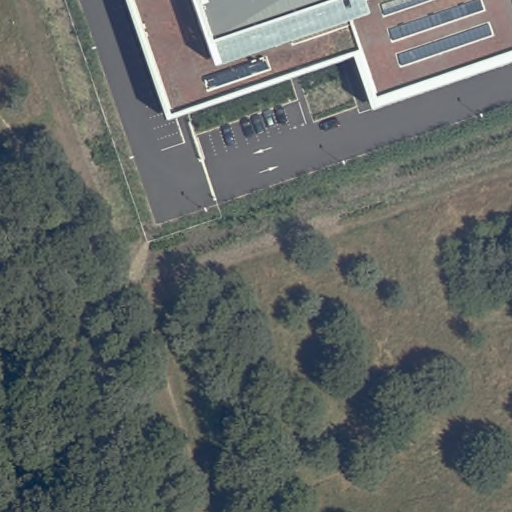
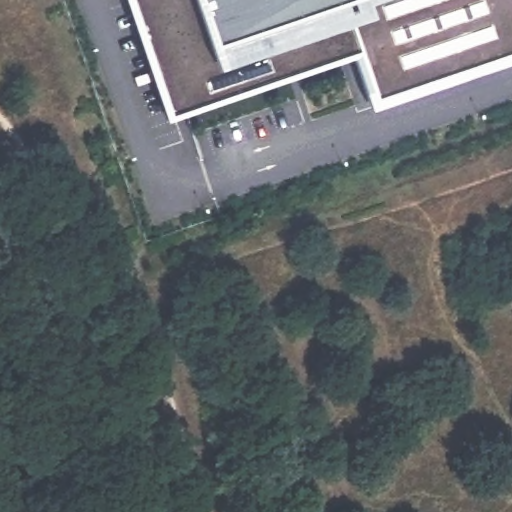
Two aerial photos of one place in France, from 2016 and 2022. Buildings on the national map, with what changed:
unchanged [(374,109),(357,56),(168,120),(126,0),(512,0),(512,61),(374,109)]

